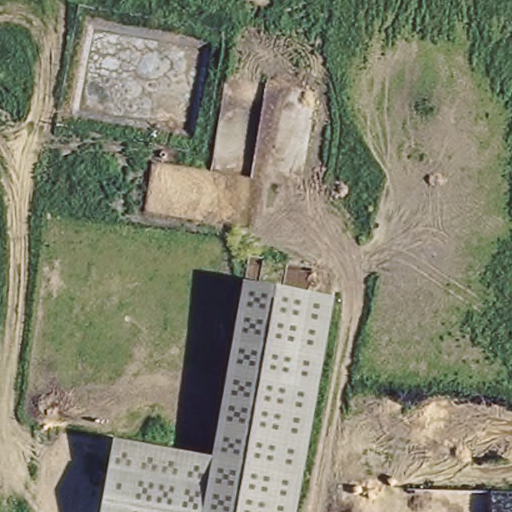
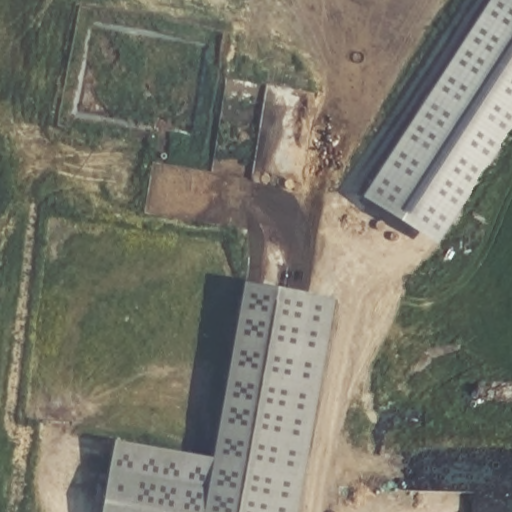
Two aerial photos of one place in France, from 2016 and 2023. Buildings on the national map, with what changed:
new [(363,199),(490,0),(512,0),(512,129),(437,246),(363,199)]
unchanged [(116,436),(214,453),(244,277),(336,296),(299,512),(102,512),(116,436)]

